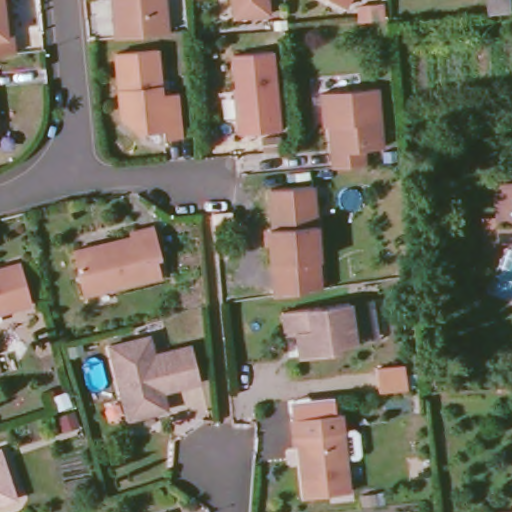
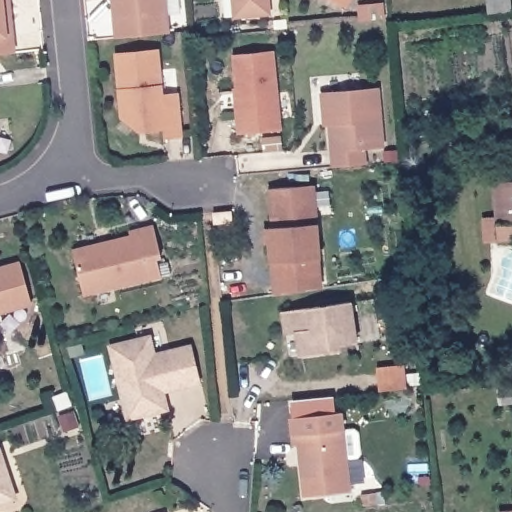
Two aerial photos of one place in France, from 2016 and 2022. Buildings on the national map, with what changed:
unchanged [(10,35),(12,53),(0,54),(0,0),(6,0),(10,35)]
unchanged [(168,31),(116,36),(114,17),(112,0),(164,0),(168,31)]
unchanged [(269,12),(233,15),(232,0),(268,0),(269,12)]
unchanged [(349,9),(335,0),(354,0),(349,9)]
unchanged [(488,0),(508,0),(509,10),(490,12),(488,0)]
unchanged [(281,128),(238,132),(234,95),(237,94),(233,52),(273,48),(281,128)]
unchanged [(163,94),(178,92),(181,134),(165,136),(164,127),(146,129),(145,122),(136,122),(126,114),(124,89),(120,90),(116,53),(158,49),(163,94)]
unchanged [(329,124),(324,124),(324,112),(321,91),(378,86),(383,145),(364,147),(365,163),(333,166),(329,124)]
unchanged [(496,185),(512,183),(512,239),(499,240),(496,185)]
unchanged [(276,292),(274,261),(273,261),(269,227),(274,226),(270,188),(313,184),(319,256),(319,257),(321,286),(276,292)]
unchanged [(232,217),(214,219),(213,209),(231,207),(232,217)]
unchanged [(96,242),(97,247),(105,245),(103,241),(131,234),(130,229),(154,223),(161,254),(157,255),(161,273),(83,294),(71,248),(96,242)]
unchanged [(28,261),(40,302),(0,313),(0,269),(28,261)]
unchanged [(351,300),(356,341),(339,343),(339,348),(300,354),(296,330),(286,331),(283,309),(351,300)]
unchanged [(150,339),(154,358),(192,348),(201,384),(171,392),(169,388),(166,389),(163,394),(168,412),(137,420),(126,414),(109,350),(150,339)]
unchanged [(379,390),(376,368),(404,365),(406,387),(379,390)]
unchanged [(349,492),(303,496),(298,445),(293,446),(292,436),(290,417),(340,412),(349,492)]
unchanged [(9,488),(13,498),(0,502),(0,459),(9,488)]

